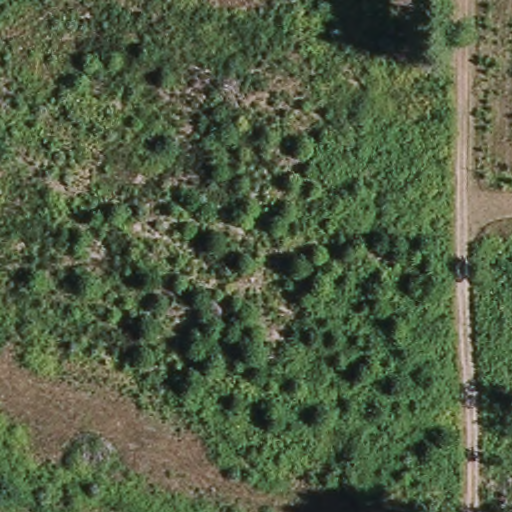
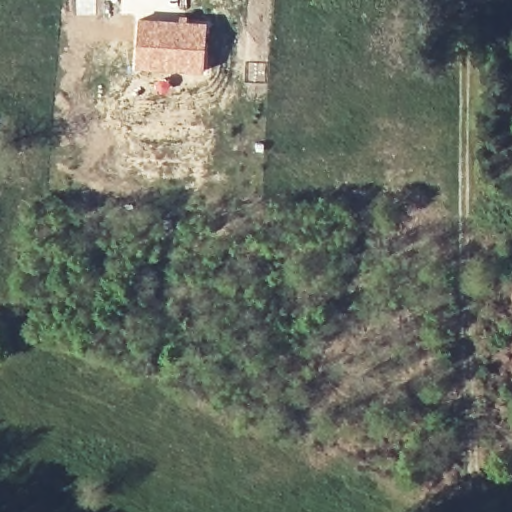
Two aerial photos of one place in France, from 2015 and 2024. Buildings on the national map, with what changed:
new [(136,17),(207,21),(204,73),(134,71),(136,17)]

